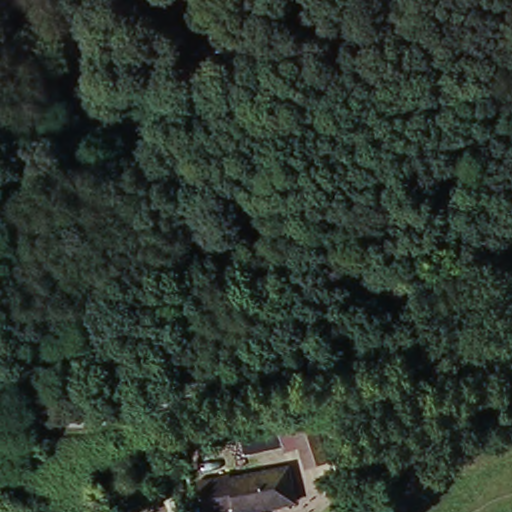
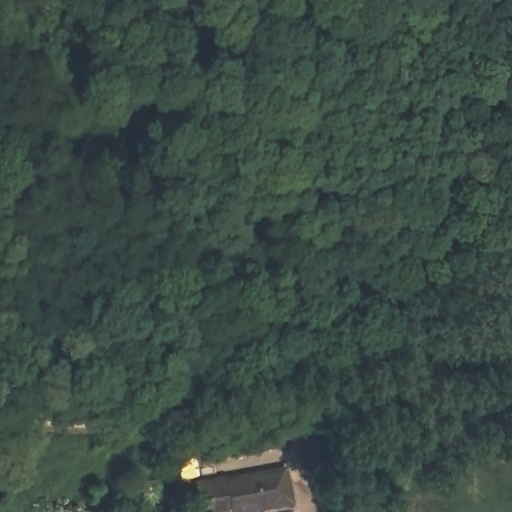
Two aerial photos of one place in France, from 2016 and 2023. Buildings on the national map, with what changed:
unchanged [(313,418),(318,449),(297,453),(292,423),(313,418)]
unchanged [(220,480),(221,484),(283,473),(287,507),(257,512),(225,512),(222,512),(200,512),(196,484),(220,480)]

